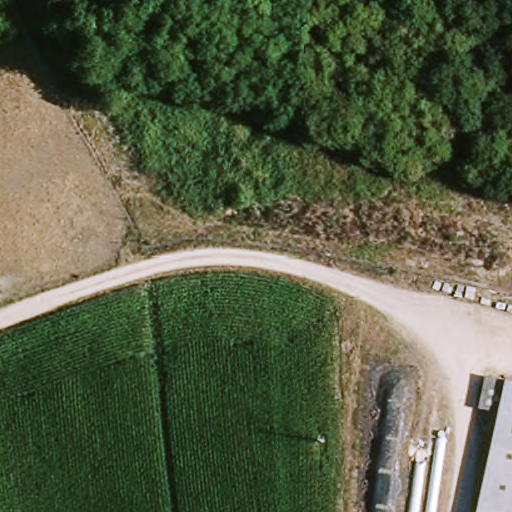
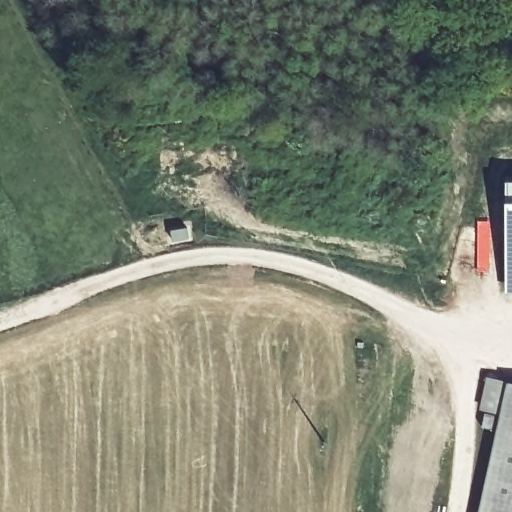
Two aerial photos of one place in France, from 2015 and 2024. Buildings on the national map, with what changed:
new [(507,181),(512,181),(512,292),(507,292),(507,181)]
unchanged [(478,512),(502,412),(484,408),(490,378),(509,383),(512,384),(512,512),(478,512)]

